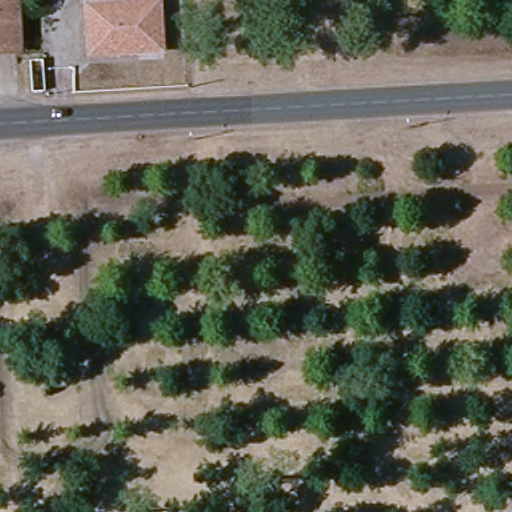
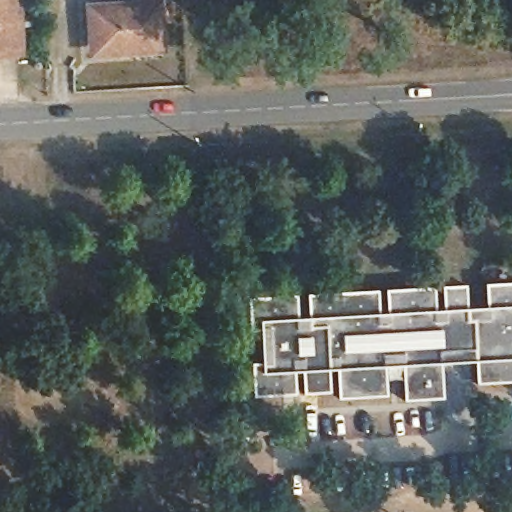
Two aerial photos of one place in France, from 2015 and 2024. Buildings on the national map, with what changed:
unchanged [(0,53),(0,0),(7,0),(10,52),(0,53)]
unchanged [(156,0),(160,58),(142,58),(141,54),(90,57),(88,14),(135,11),(134,0),(156,0)]
new [(404,287),(432,285),(434,313),(441,313),(439,285),(463,283),(465,311),(484,310),(482,282),(512,280),(512,380),(474,382),(472,358),(439,360),(441,396),(402,398),(399,358),(404,287)]
new [(294,294),(296,322),(307,321),(305,293),(375,289),(377,317),(385,316),(383,288),(404,287),(399,358),(383,359),(385,393),(336,396),(334,362),(327,362),(328,390),(302,392),(300,364),(292,364),(294,392),(252,395),(249,361),(264,361),(262,328),(247,329),(246,297),(294,294)]

